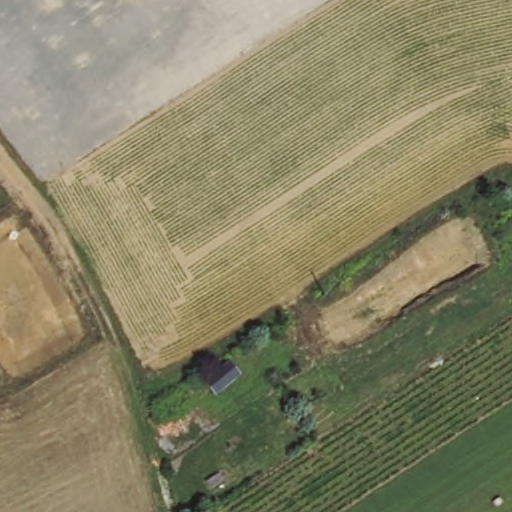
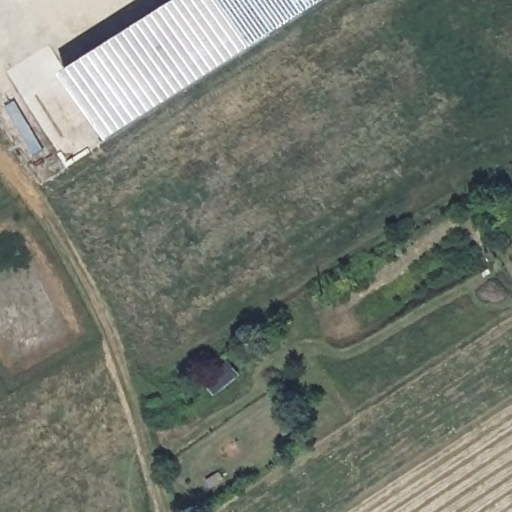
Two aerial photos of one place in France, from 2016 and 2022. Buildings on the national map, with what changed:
new [(66,69),(174,0),(253,0),(273,33),(109,138),(66,69)]

